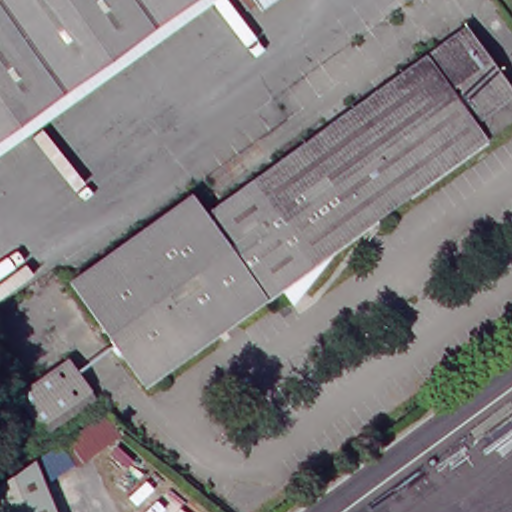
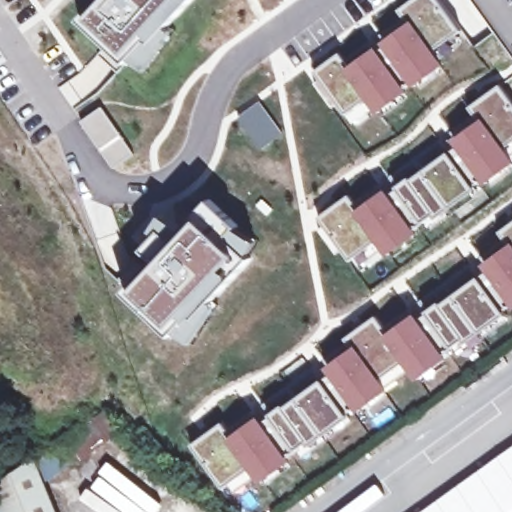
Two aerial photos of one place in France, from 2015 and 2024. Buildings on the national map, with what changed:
demolished [(0,124),(0,0),(173,0),(0,124)]
new [(98,0),(191,0),(151,44),(146,39),(128,61),(81,18),(98,0)]
new [(337,53),(354,74),(366,66),(362,61),(376,51),(378,54),(389,45),(387,41),(399,32),(404,38),(416,30),(399,10),(414,0),(438,0),(461,30),(431,50),(439,62),(378,108),(369,95),(348,113),(316,71),(337,53)]
demolished [(512,78),(512,115),(489,131),(431,50),(471,21),(512,78)]
demolished [(146,377),(74,275),(196,188),(210,206),(431,50),(489,131),(146,377)]
new [(363,210),(471,130),(474,135),(486,126),(472,106),(502,85),(512,98),(512,141),(503,148),(509,158),(479,180),(482,185),(437,217),(434,213),(388,249),(379,236),(351,258),(321,216),(352,197),(363,210)]
new [(103,107),(134,152),(113,167),(81,122),(103,107)]
new [(228,237),(251,258),(213,300),(217,305),(193,343),(176,332),(173,336),(129,294),(136,288),(157,263),(144,251),(165,229),(174,237),(211,200),(240,225),(228,237)]
new [(223,423),(228,430),(374,315),(385,330),(449,278),(491,328),(393,400),(387,391),(261,479),(253,468),(224,487),(195,446),(223,423)]
demolished [(18,395),(68,360),(88,388),(38,423),(18,395)]
unchanged [(121,432),(76,465),(73,462),(59,441),(104,409),(121,432)]
unchanged [(56,512),(1,512),(0,510),(0,483),(33,460),(59,441),(73,462),(44,483),(56,512)]
new [(512,512),(423,512),(512,448),(512,512)]

